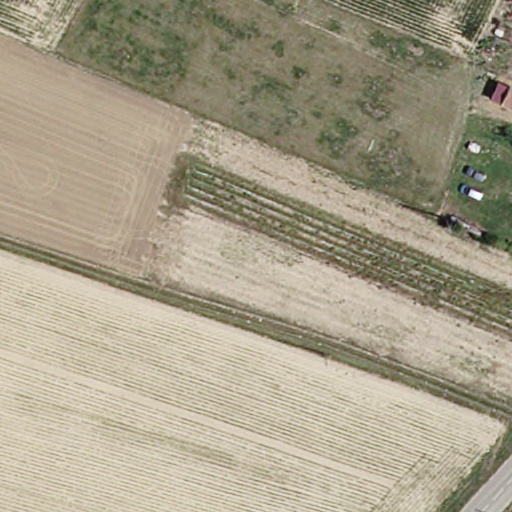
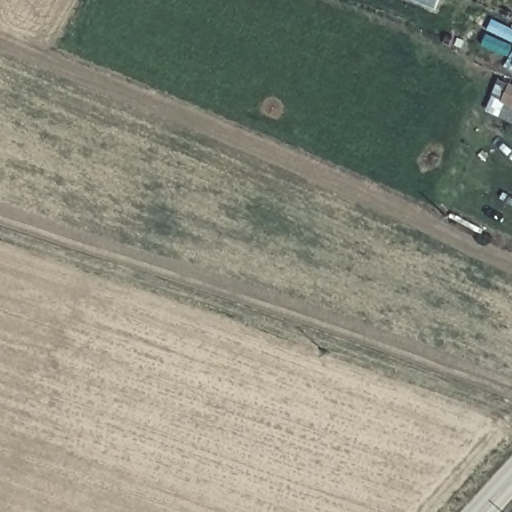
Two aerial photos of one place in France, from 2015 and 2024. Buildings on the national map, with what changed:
new [(436,9),(414,0),(440,0),(436,9)]
unchanged [(508,87),(512,89),(512,108),(501,102),(508,87)]

